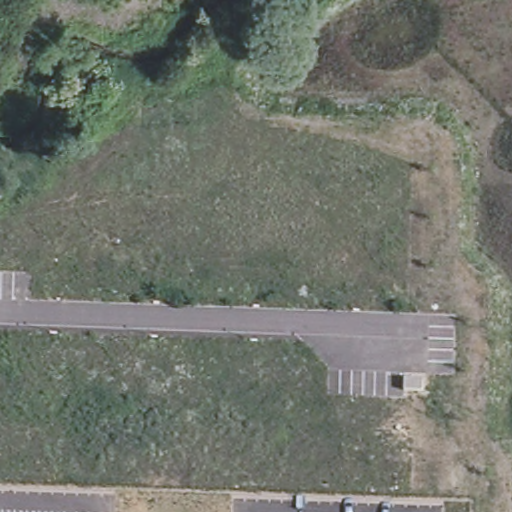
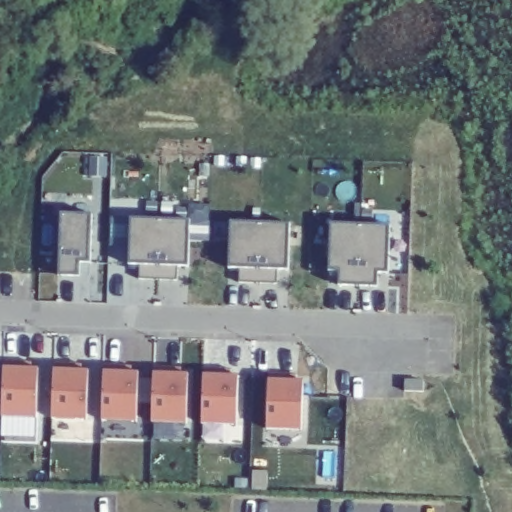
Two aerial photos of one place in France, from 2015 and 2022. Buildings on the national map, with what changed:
new [(60,215),(91,216),(90,263),(80,262),(80,277),(58,277),(60,215)]
new [(140,265),(128,264),(131,220),(189,222),(187,267),(178,267),(177,281),(140,279),(140,265)]
new [(240,269),(228,269),(230,224),(289,225),(287,270),(279,269),(278,284),(240,282),(240,269)]
new [(339,273),(330,273),(332,226),(390,228),(387,273),(379,274),(378,287),(339,287),(339,273)]
new [(4,367),(39,369),(36,418),(2,416),(4,367)]
new [(55,370),(88,371),(85,420),(52,419),(55,370)]
new [(104,372),(138,373),(135,422),(102,422),(104,372)]
new [(154,373),(189,375),(187,424),(152,423),(154,373)]
new [(204,375),(239,376),(237,427),(202,426),(204,375)]
new [(268,379),(305,382),(302,430),(266,430),(268,379)]

